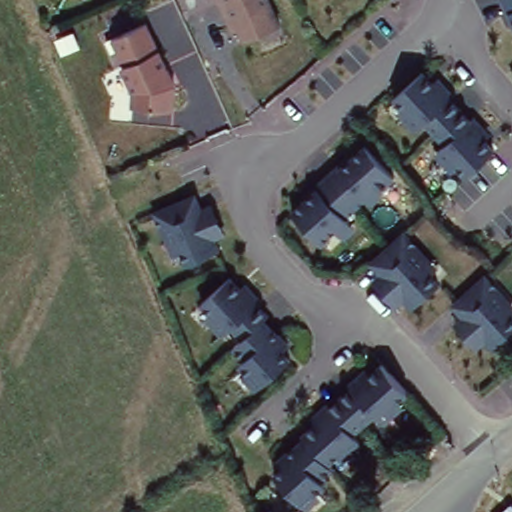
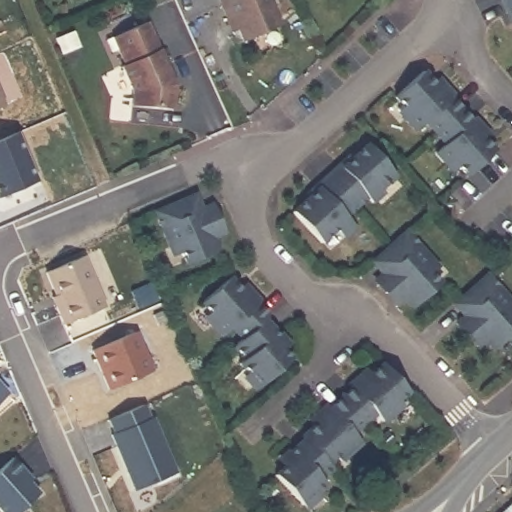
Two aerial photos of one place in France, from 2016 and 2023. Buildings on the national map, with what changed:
unchanged [(279,19),(239,41),(220,0),(270,0),(279,19)]
unchanged [(503,0),(512,0),(512,20),(503,0)]
unchanged [(172,78),(169,106),(130,104),(132,89),(111,35),(144,21),(172,78)]
unchanged [(426,71),(432,79),(437,75),(455,95),(452,99),(470,119),(473,116),(492,134),(487,140),(496,154),(468,177),(460,166),(452,173),(435,152),(441,146),(423,125),(413,132),(397,112),(402,107),(395,99),(426,71)]
new [(0,109),(0,97),(5,107),(0,109)]
new [(0,198),(0,140),(16,134),(37,183),(0,198)]
unchanged [(317,190),(311,184),(335,164),(339,169),(367,146),(397,175),(377,191),(381,195),(368,205),(366,201),(346,217),(356,229),(344,240),(336,231),(322,244),(291,211),(317,190)]
unchanged [(180,255),(173,257),(152,211),(196,191),(202,205),(212,201),(226,237),(216,242),(221,252),(187,267),(180,255)]
unchanged [(407,226),(438,268),(432,274),(440,285),(412,310),(406,301),(395,310),(371,281),(378,273),(368,259),(407,226)]
new [(106,306),(61,324),(50,297),(53,296),(44,271),(84,256),(106,306)]
unchanged [(487,274),(511,300),(512,299),(512,335),(492,352),(487,347),(479,352),(454,322),(461,317),(452,305),(487,274)]
unchanged [(233,277),(240,287),(247,281),(266,304),(263,307),(271,316),(268,320),(290,345),(283,349),(292,363),(258,390),(244,372),(247,371),(239,362),(245,356),(232,341),(240,337),(234,326),(223,336),(205,314),(207,312),(200,305),(233,277)]
unchanged [(288,448),(290,451),(311,431),(309,428),(315,422),(311,420),(329,403),(331,406),(349,389),(346,385),(367,366),(371,371),(377,364),(411,398),(385,425),(376,416),(355,436),(360,441),(338,464),(335,461),(329,466),(332,469),(321,481),(326,487),(303,510),(272,477),(282,467),(275,460),(288,448)]
new [(0,400),(0,381),(10,392),(0,400)]
new [(150,417),(153,416),(177,473),(134,492),(110,433),(113,432),(107,418),(144,402),(150,417)]
new [(30,482),(40,494),(20,512),(2,512),(0,510),(0,467),(11,456),(34,477),(30,482)]
new [(512,507),(512,512),(504,512),(511,506),(512,507)]

